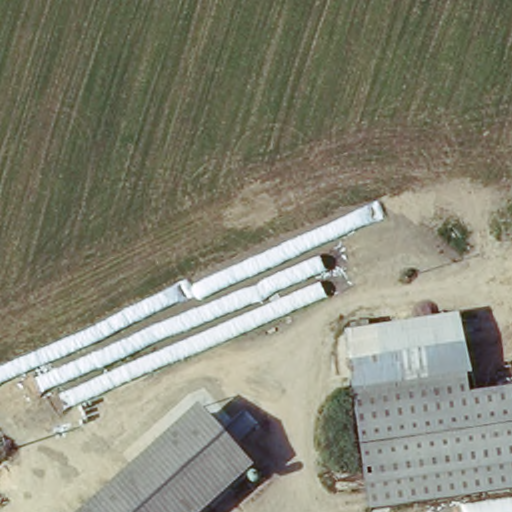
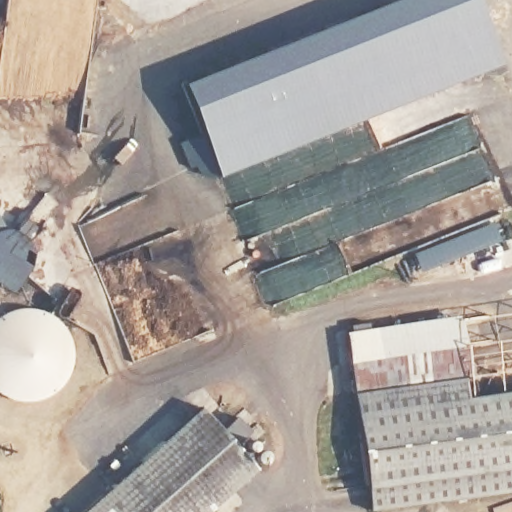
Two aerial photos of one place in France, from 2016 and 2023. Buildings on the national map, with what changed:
new [(182,80),(378,0),(478,0),(503,59),(220,173),(219,172),(209,176),(207,176),(204,174),(198,162),(192,164),(182,139),(202,130),(182,80)]
unchanged [(458,320),(469,399),(512,393),(512,492),(369,511),(344,336),(458,320)]
unchanged [(254,469),(206,512),(83,512),(199,408),(254,469)]

